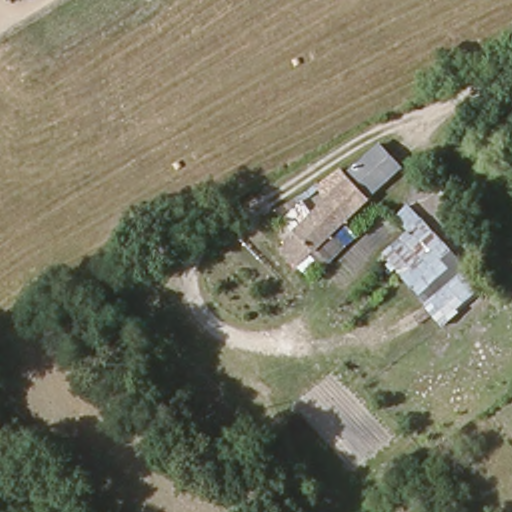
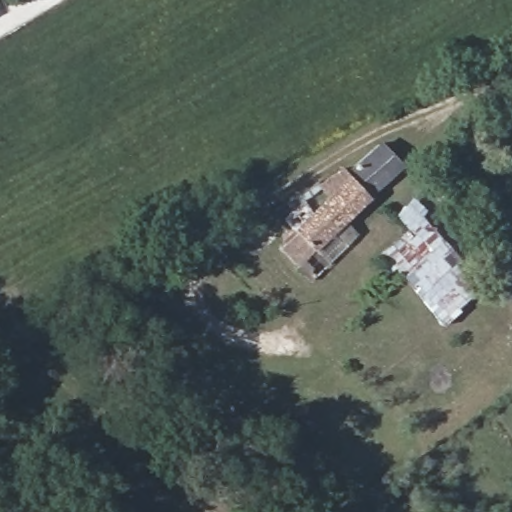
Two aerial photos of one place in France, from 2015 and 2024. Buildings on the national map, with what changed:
unchanged [(327,191),(318,179),(339,166),(350,172),(385,144),(409,164),(340,229),(350,241),(322,266),(310,252),(300,267),(280,247),(327,191)]
unchanged [(422,214),(485,282),(440,321),(380,253),(422,214)]

